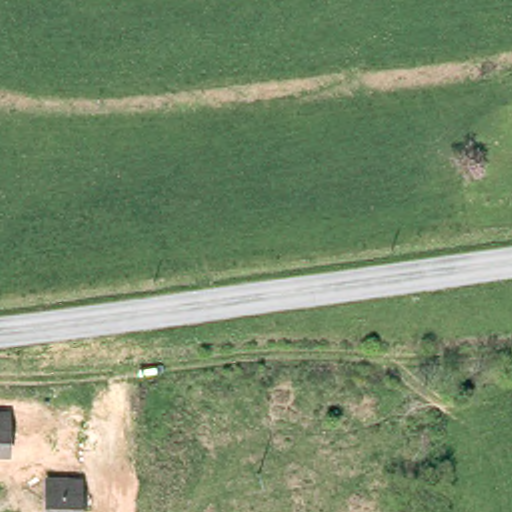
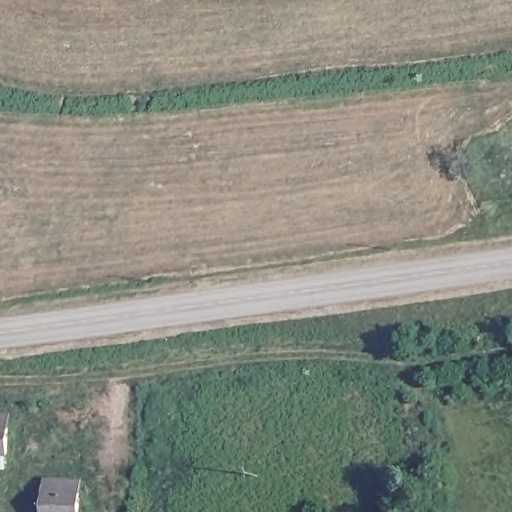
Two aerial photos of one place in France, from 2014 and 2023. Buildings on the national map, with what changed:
unchanged [(5,450),(0,450),(0,427),(5,427),(5,450)]
unchanged [(70,492),(80,492),(79,512),(45,512),(46,480),(71,481),(70,492)]

